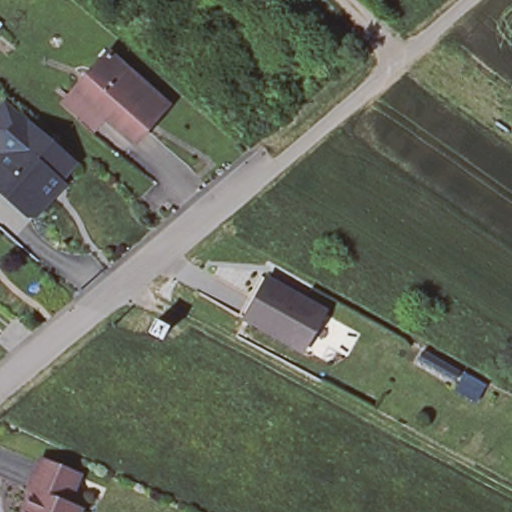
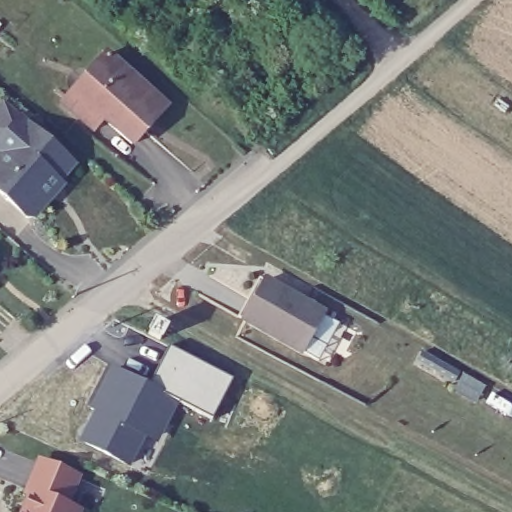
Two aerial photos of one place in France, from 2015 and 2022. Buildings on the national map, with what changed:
unchanged [(107,58),(165,108),(134,144),(105,120),(97,129),(67,104),(75,94),(107,58)]
unchanged [(40,219),(31,219),(0,192),(0,160),(5,155),(5,144),(20,126),(25,120),(40,134),(78,166),(63,184),(67,188),(54,203),(40,219)]
unchanged [(302,354),(245,323),(239,319),(260,279),(267,283),(324,315),(302,354)]
new [(232,378),(212,418),(170,399),(153,438),(142,433),(127,464),(81,441),(99,411),(94,408),(113,370),(148,388),(170,347),(232,378)]
new [(489,386),(477,404),(452,391),(464,374),(489,386)]
unchanged [(77,512),(23,512),(31,492),(27,490),(32,477),(40,459),(77,474),(69,494),(65,504),(78,509),(77,512)]

